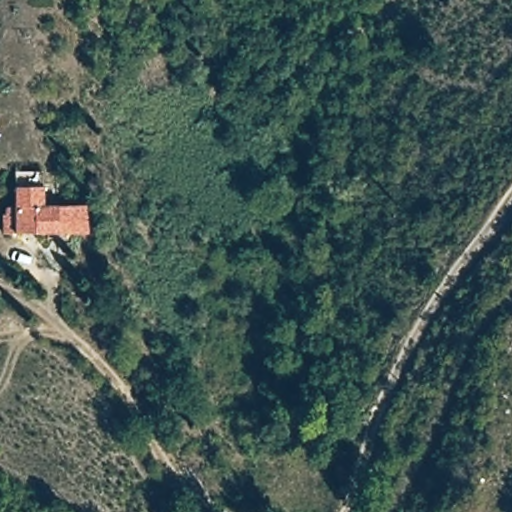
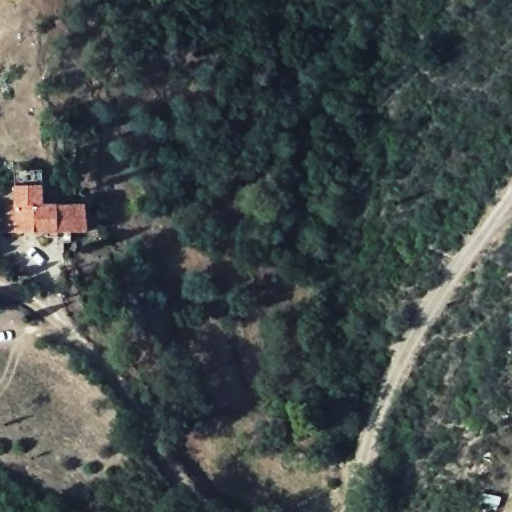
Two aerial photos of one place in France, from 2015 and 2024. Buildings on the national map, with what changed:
unchanged [(47,185),(47,204),(90,205),(89,234),(9,237),(10,200),(21,200),(22,185),(47,185)]

